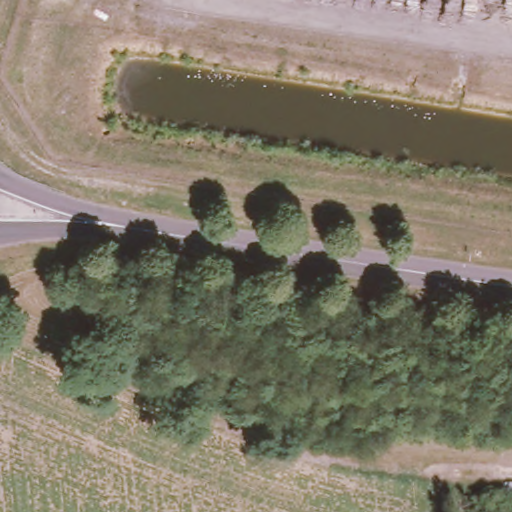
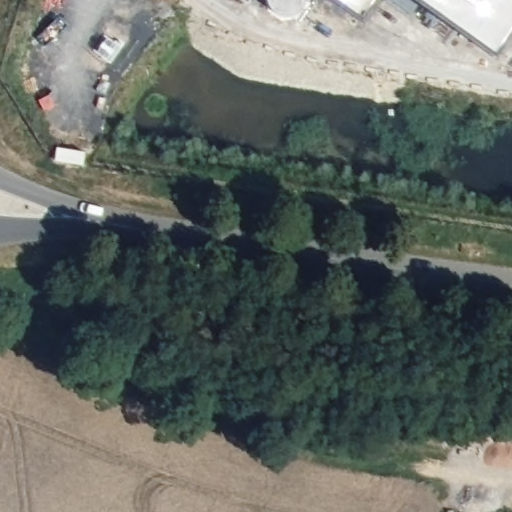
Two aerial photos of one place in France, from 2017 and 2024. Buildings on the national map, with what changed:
new [(330,0),(378,0),(362,23),(330,0)]
new [(499,57),(419,0),(512,0),(512,39),(499,57)]

